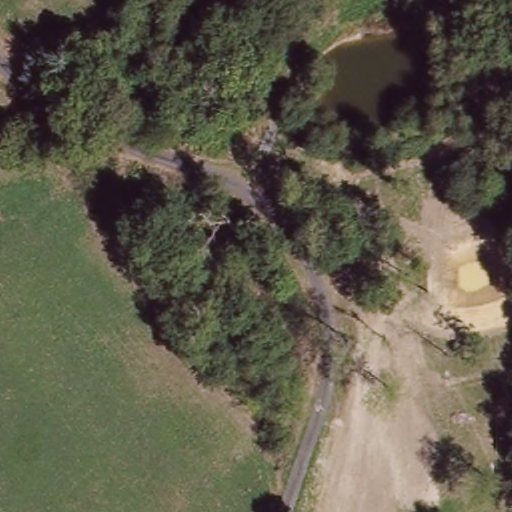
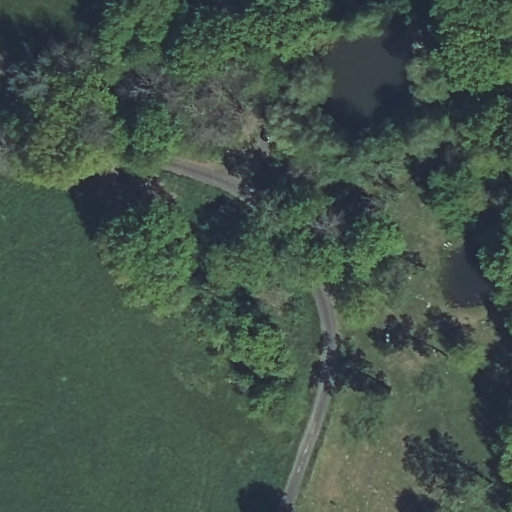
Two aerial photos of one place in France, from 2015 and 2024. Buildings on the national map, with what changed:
[]

